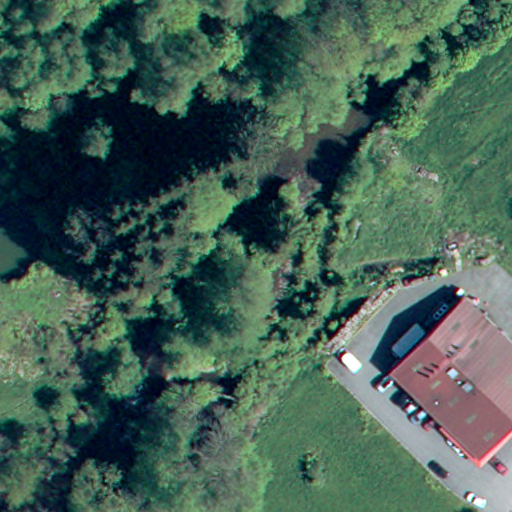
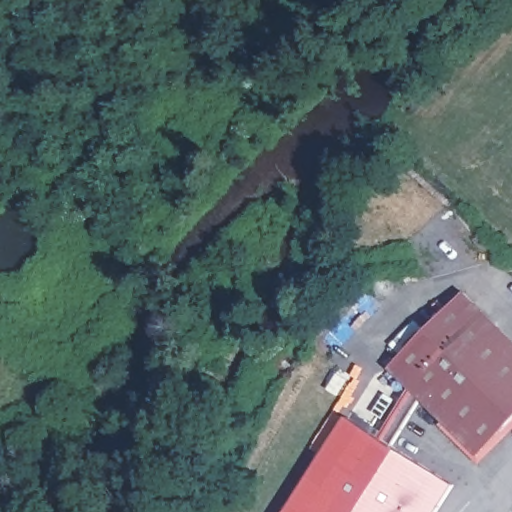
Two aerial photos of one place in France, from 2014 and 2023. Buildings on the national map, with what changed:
unchanged [(461,291),(512,344),(512,417),(473,454),(385,362),(461,291)]
new [(379,435),(408,386),(420,398),(393,446),(455,483),(437,512),(286,512),(347,415),(379,435)]

